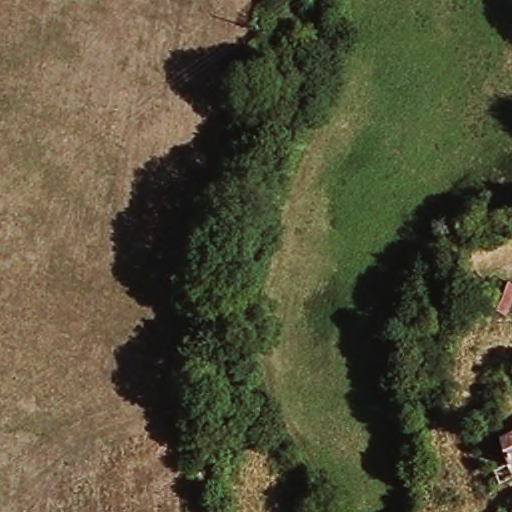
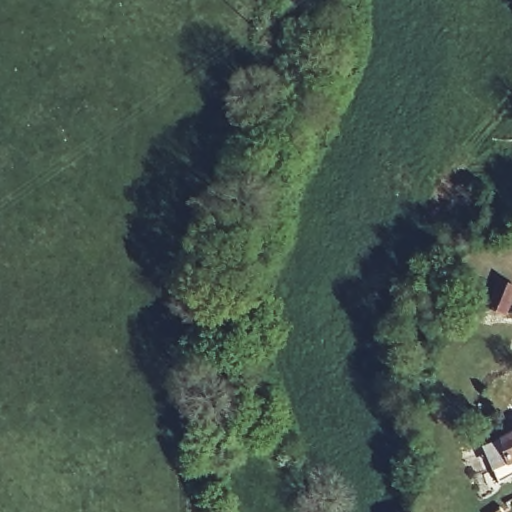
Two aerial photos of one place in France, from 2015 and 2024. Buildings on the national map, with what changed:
unchanged [(492,286),(511,294),(500,321),(481,313),(492,286)]
unchanged [(512,435),(512,463),(505,466),(495,442),(512,435)]

